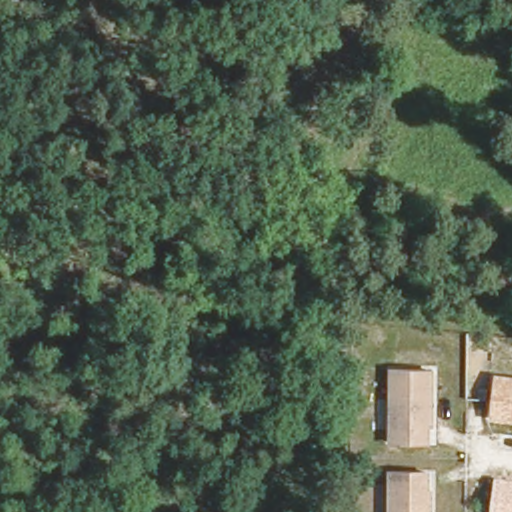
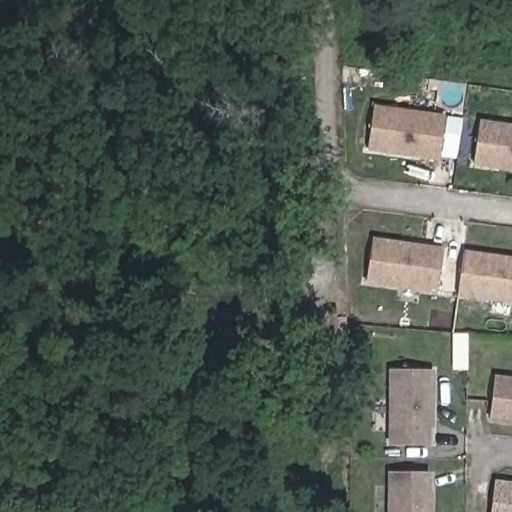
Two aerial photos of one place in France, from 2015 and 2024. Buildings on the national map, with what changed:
new [(368,152),(373,104),(443,115),(438,160),(368,152)]
new [(512,124),(512,171),(475,166),(480,119),(512,124)]
new [(373,237),(441,246),(435,292),(367,284),(373,237)]
new [(462,250),(512,257),(512,304),(459,296),(462,250)]
unchanged [(423,368),(423,422),(423,423),(420,423),(420,440),(382,440),(382,418),(382,368),(423,368)]
unchanged [(494,375),(512,378),(512,422),(489,419),(494,375)]
demolished [(512,447),(512,510),(506,510),(512,447)]
unchanged [(420,470),(420,487),(422,487),(422,512),(382,512),(382,470),(420,470)]
new [(493,480),(512,482),(512,512),(490,512),(493,480)]

